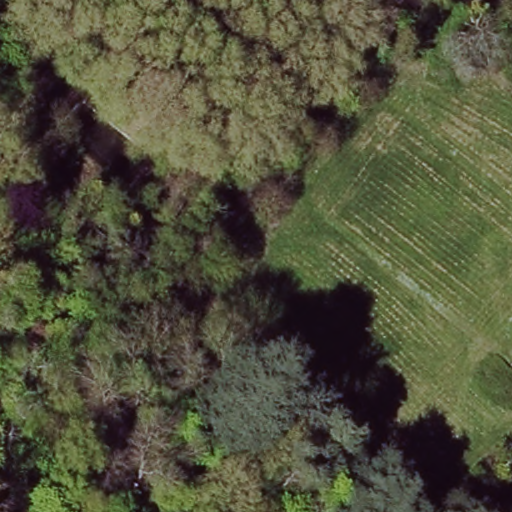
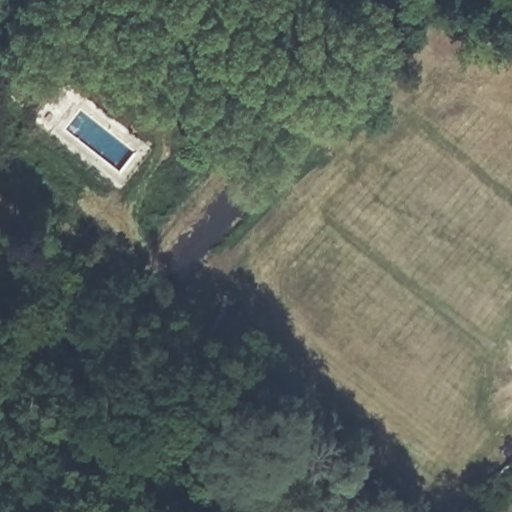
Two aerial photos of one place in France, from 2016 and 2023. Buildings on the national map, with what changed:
unchanged [(28,62),(59,84),(34,119),(4,97),(28,62)]

